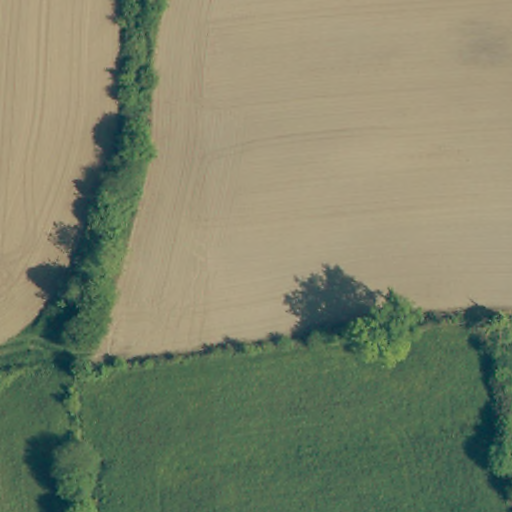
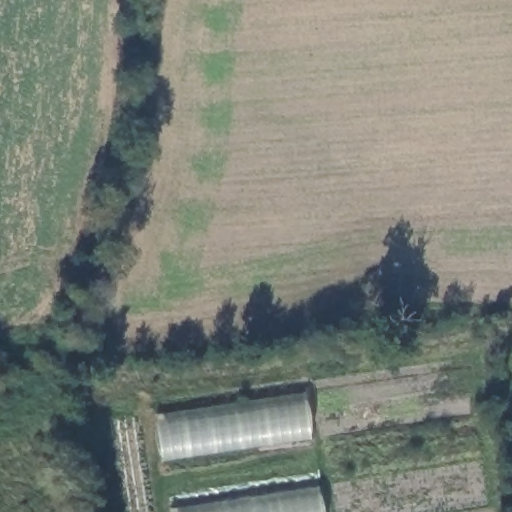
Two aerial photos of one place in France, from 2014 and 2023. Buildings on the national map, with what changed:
new [(306,393),(312,438),(161,461),(154,413),(306,393)]
new [(320,488),(324,512),(169,512),(169,508),(320,488)]

